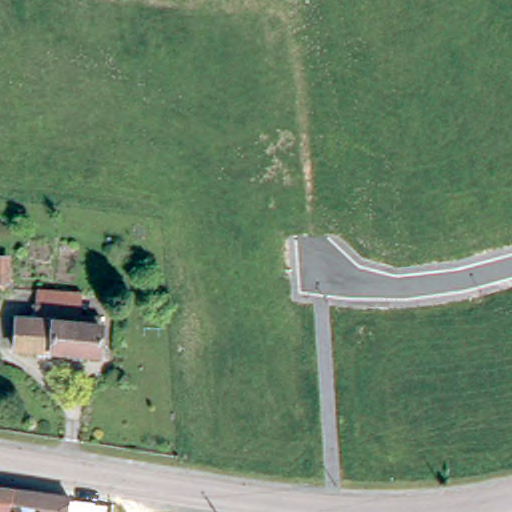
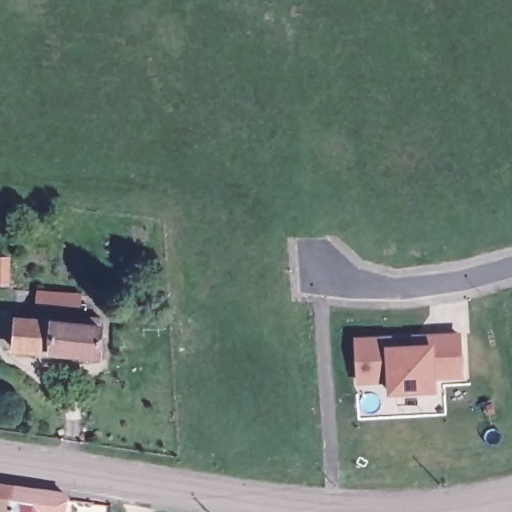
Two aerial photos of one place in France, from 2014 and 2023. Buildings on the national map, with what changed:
new [(10,287),(6,287),(0,287),(0,262),(12,263),(10,287)]
unchanged [(35,320),(37,309),(37,304),(40,289),(84,295),(82,310),(81,315),(107,319),(105,329),(100,364),(12,348),(16,318),(35,320)]
new [(462,329),(465,376),(437,377),(438,392),(389,394),(387,378),(358,383),(355,336),(392,333),(393,344),(414,343),(414,331),(462,329)]
unchanged [(0,487),(12,488),(13,512),(0,512),(0,487)]
unchanged [(12,488),(69,498),(68,512),(13,512),(12,488)]

